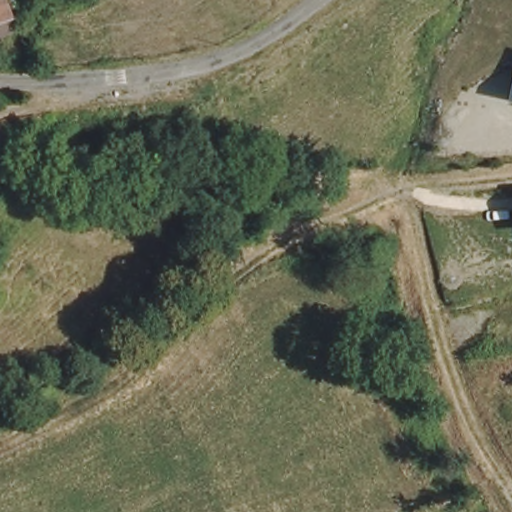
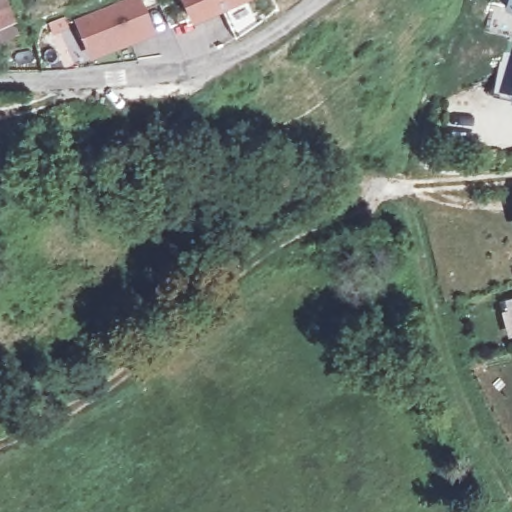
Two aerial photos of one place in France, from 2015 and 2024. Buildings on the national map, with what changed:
unchanged [(12,38),(0,44),(0,0),(1,0),(12,38)]
new [(88,58),(73,19),(121,0),(142,0),(155,32),(88,58)]
new [(190,22),(180,0),(240,0),(190,22)]
new [(512,11),(502,7),(504,0),(512,0),(512,11)]

